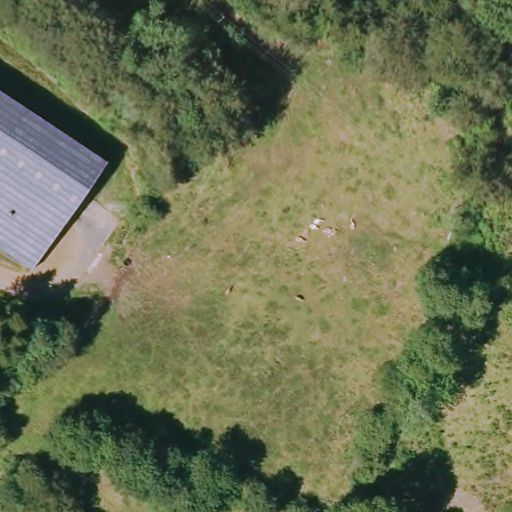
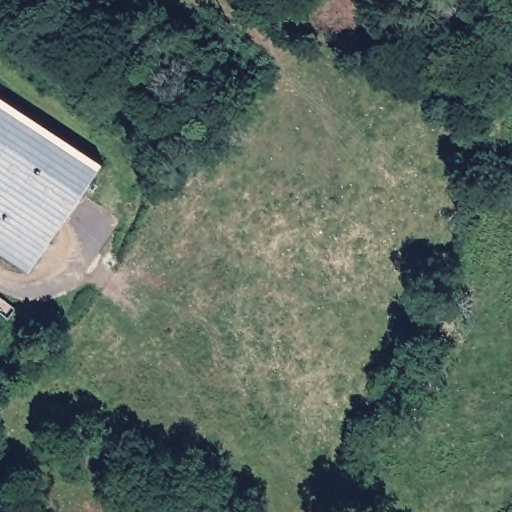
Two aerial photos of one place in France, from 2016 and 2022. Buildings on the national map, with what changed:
unchanged [(28,274),(0,255),(0,96),(100,163),(28,274)]

